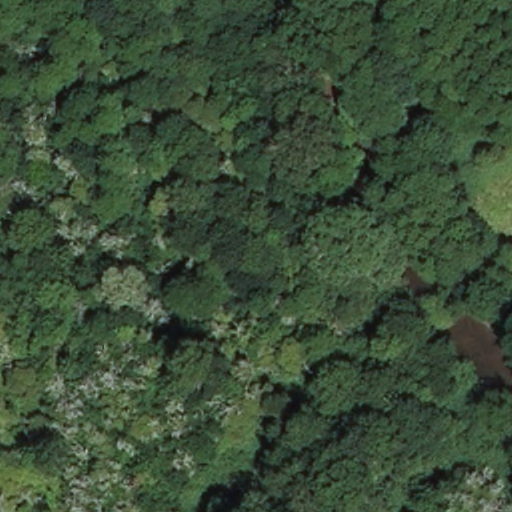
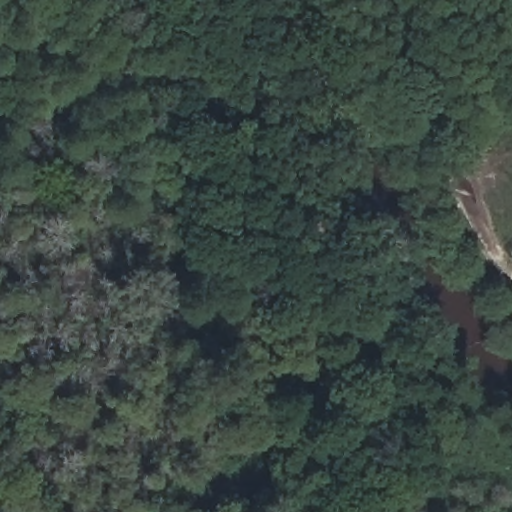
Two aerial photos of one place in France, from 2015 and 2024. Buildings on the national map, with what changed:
[]

